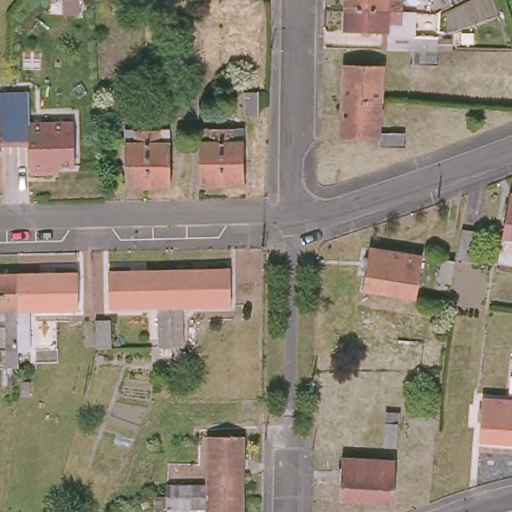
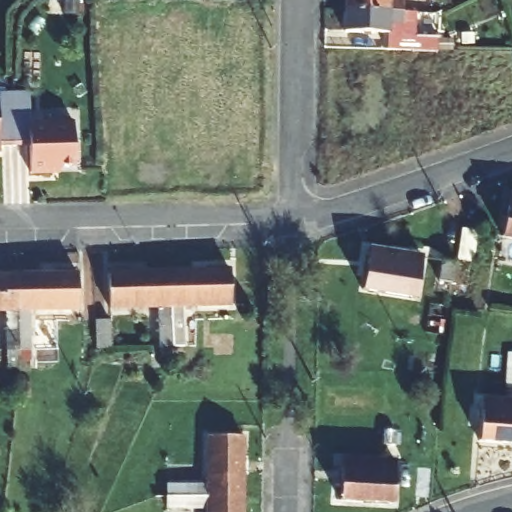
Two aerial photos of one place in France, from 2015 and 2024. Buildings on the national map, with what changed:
unchanged [(345,0),(402,0),(402,11),(345,9),(345,0)]
unchanged [(402,11),(411,12),(410,35),(433,36),(433,50),(432,64),(413,64),(413,49),(387,48),(388,32),(344,31),(345,9),(402,11)]
demolished [(381,64),(380,101),(342,99),(344,62),(381,64)]
demolished [(198,91),(198,115),(185,116),(171,116),(171,92),(184,92),(198,91)]
demolished [(243,94),(258,94),(258,114),(243,114),(243,94)]
demolished [(98,96),(113,95),(114,119),(99,119),(98,96)]
unchanged [(13,147),(0,147),(0,99),(12,99),(13,147)]
unchanged [(12,99),(26,99),(28,128),(71,127),(70,170),(45,171),(45,176),(26,176),(26,147),(13,147),(12,99)]
demolished [(380,101),(379,132),(389,132),(389,131),(404,131),(403,147),(377,146),(377,138),(340,136),(342,99),(380,101)]
demolished [(221,125),(222,183),(199,183),(200,143),(201,139),(201,126),(221,125)]
demolished [(221,125),(244,125),(244,182),(222,183),(221,125)]
demolished [(146,127),(147,184),(124,185),(124,128),(146,127)]
demolished [(146,127),(168,127),(168,184),(147,184),(146,127)]
unchanged [(512,193),(512,236),(504,235),(512,193)]
unchanged [(480,230),(474,260),(460,257),(466,227),(480,230)]
unchanged [(417,259),(410,299),(359,292),(366,252),(417,259)]
unchanged [(444,287),(434,285),(438,262),(448,264),(444,287)]
unchanged [(226,268),(226,303),(180,304),(180,345),(169,345),(168,311),(168,305),(168,269),(226,268)]
unchanged [(168,305),(168,311),(169,345),(158,346),(158,305),(106,306),(106,270),(168,269),(168,305)]
unchanged [(0,321),(0,273),(13,273),(74,271),(75,306),(25,308),(26,347),(15,348),(5,348),(4,321),(0,321)]
unchanged [(110,316),(113,343),(98,345),(95,318),(110,316)]
unchanged [(512,400),(512,441),(502,441),(481,439),(482,425),(484,398),(512,400)]
unchanged [(397,421),(396,444),(383,443),(384,420),(397,421)]
unchanged [(171,490),(186,489),(186,478),(209,478),(210,439),(244,440),(243,502),(171,500),(171,490)]
unchanged [(394,458),(393,498),(339,495),(341,456),(394,458)]
unchanged [(430,461),(428,489),(413,487),(415,460),(430,461)]
unchanged [(196,512),(171,511),(171,500),(243,502),(243,512),(196,512)]

